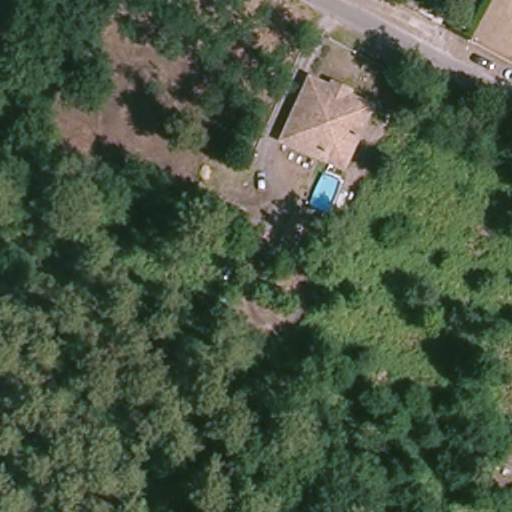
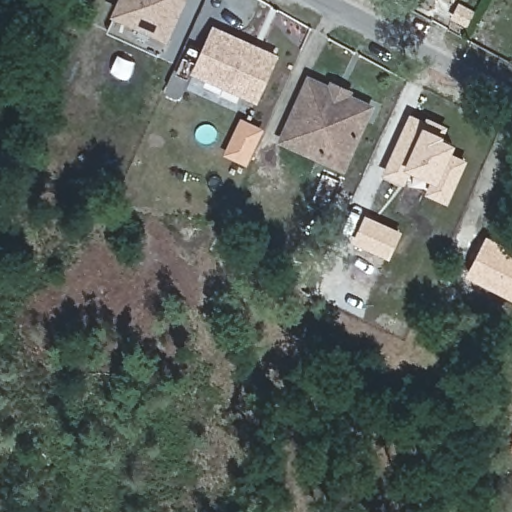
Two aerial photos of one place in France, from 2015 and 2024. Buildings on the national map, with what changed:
new [(110,15),(116,0),(185,0),(167,40),(110,15)]
new [(256,102),(190,72),(212,24),(278,54),(256,102)]
unchanged [(320,156),(282,140),(309,77),(331,87),(332,82),(349,90),(347,94),(370,105),(354,142),(344,166),(320,156)]
new [(426,194),(435,179),(411,169),(403,183),(384,174),(410,112),(425,120),(428,115),(448,125),(445,132),(444,136),(456,142),(451,151),(467,160),(448,202),(426,194)]
new [(247,163),(247,164),(222,154),(240,116),(263,127),(247,163)]
new [(512,247),(512,299),(467,276),(487,235),(512,247)]

